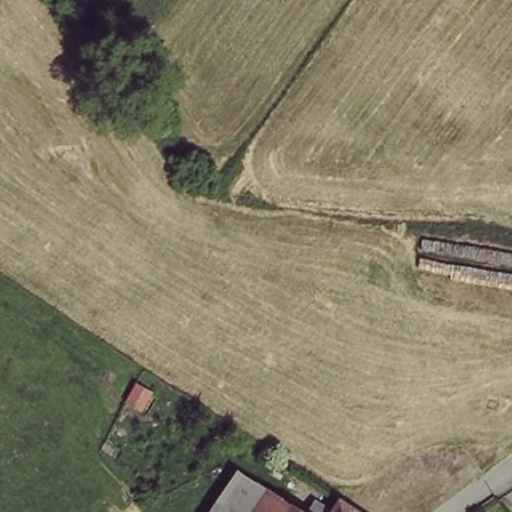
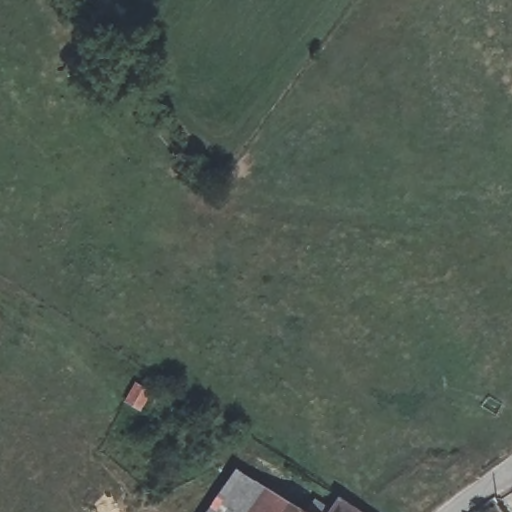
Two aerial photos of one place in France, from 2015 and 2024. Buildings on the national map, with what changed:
unchanged [(208,512),(235,470),(304,512),(208,512)]
unchanged [(354,512),(329,512),(337,500),(354,512)]

